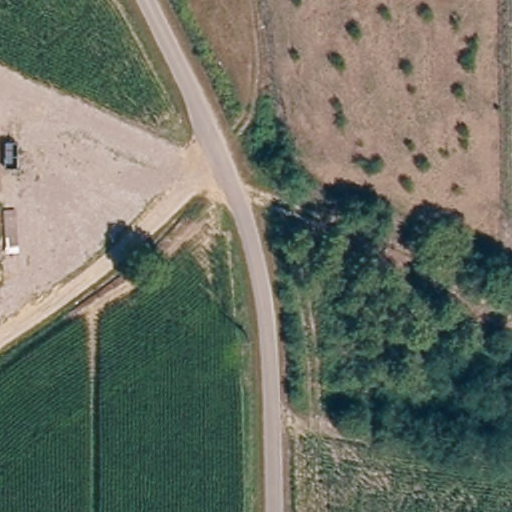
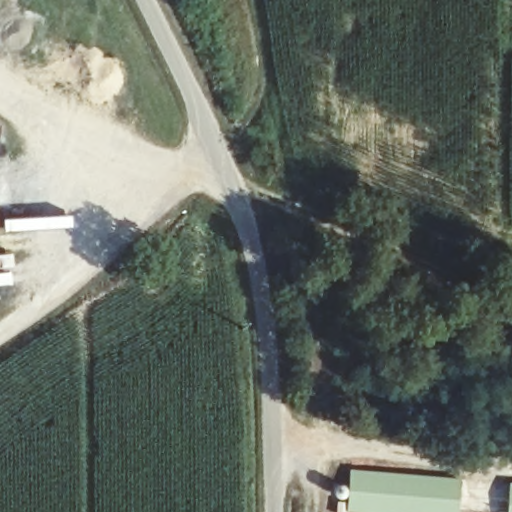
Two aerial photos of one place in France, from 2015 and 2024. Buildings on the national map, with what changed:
new [(348,468),(463,477),(460,512),(364,512),(346,511),(348,468)]
new [(512,480),(512,512),(505,512),(507,480),(512,480)]

